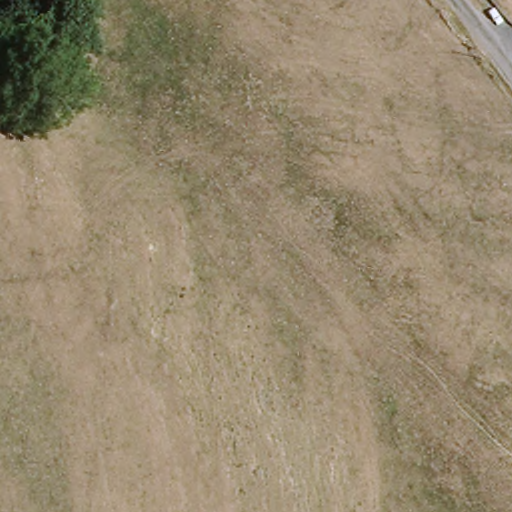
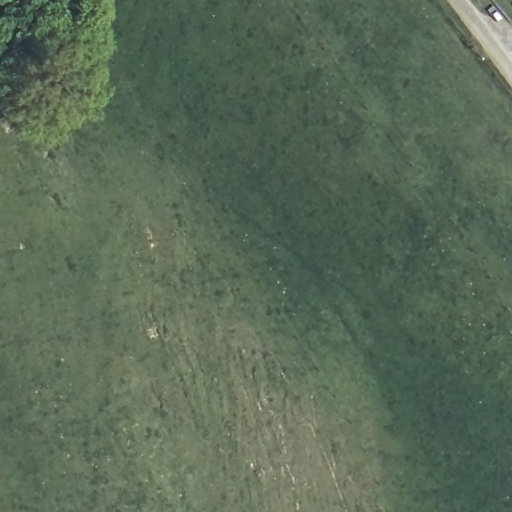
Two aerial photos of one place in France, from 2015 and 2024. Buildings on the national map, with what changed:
[]

